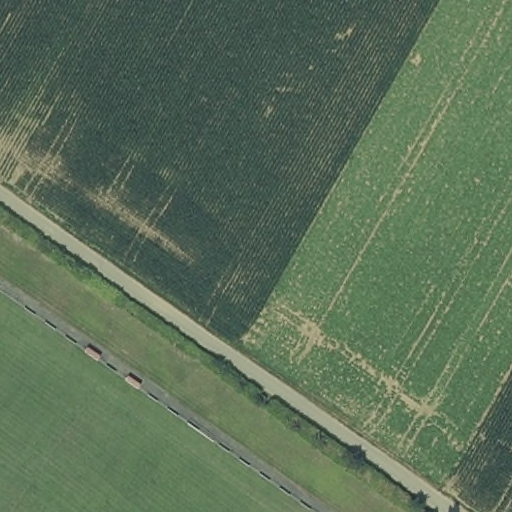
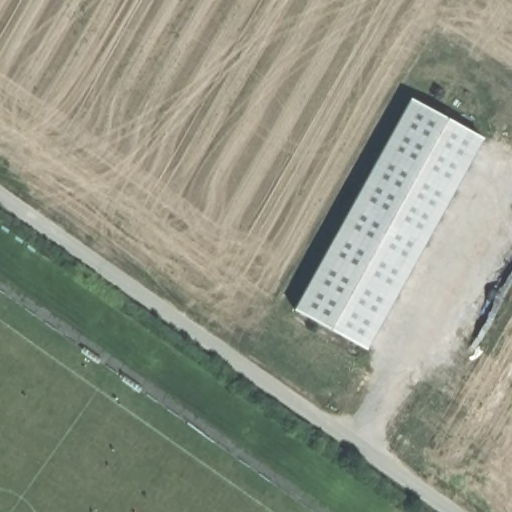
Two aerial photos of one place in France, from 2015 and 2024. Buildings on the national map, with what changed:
new [(410,100),(481,138),(365,348),(295,310),(410,100)]
new [(88,346),(100,355),(97,360),(85,352),(88,346)]
new [(129,375),(141,383),(137,389),(125,380),(129,375)]

